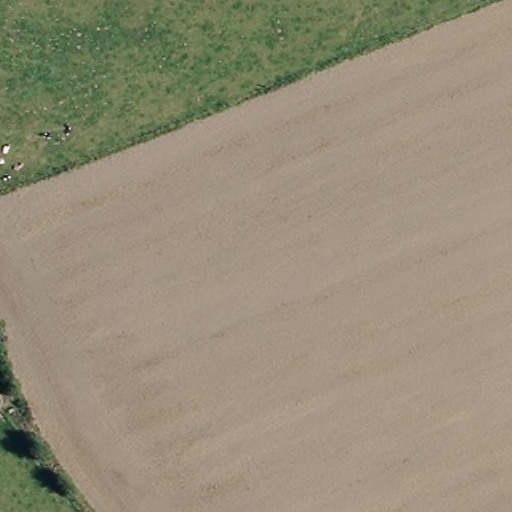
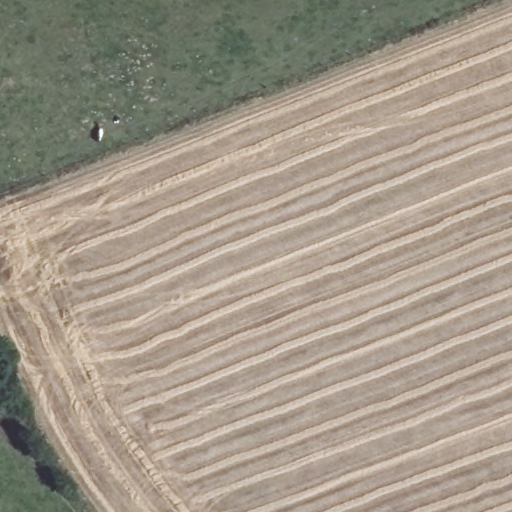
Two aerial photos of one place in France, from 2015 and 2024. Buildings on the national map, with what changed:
[]

